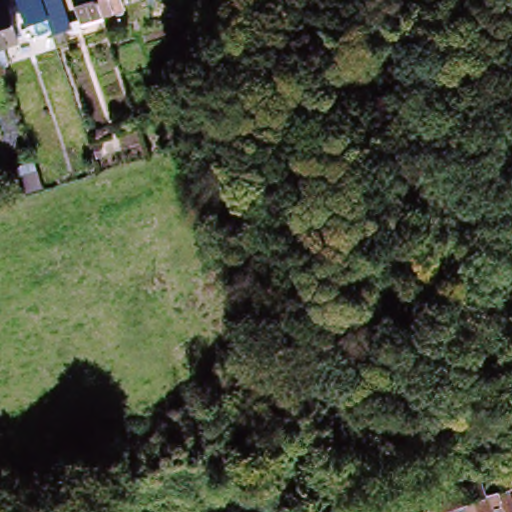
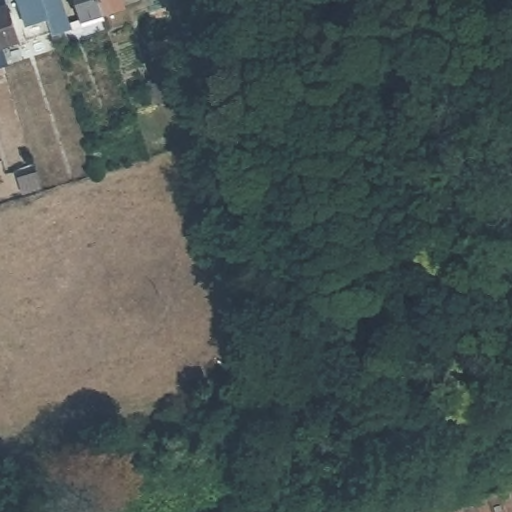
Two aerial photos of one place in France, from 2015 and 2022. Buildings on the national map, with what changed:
unchanged [(8,0),(30,0),(49,0),(59,30),(40,36),(41,40),(32,42),(23,45),(17,28),(8,0)]
unchanged [(82,24),(74,0),(95,0),(118,0),(120,4),(99,10),(101,17),(82,24)]
unchanged [(19,60),(12,71),(0,76),(0,19),(9,45),(19,60)]
unchanged [(42,193),(24,199),(19,181),(37,176),(42,193)]
unchanged [(438,501),(436,495),(512,468),(512,512),(408,512),(438,501)]
unchanged [(358,507),(366,505),(369,512),(353,512),(352,510),(358,507)]

